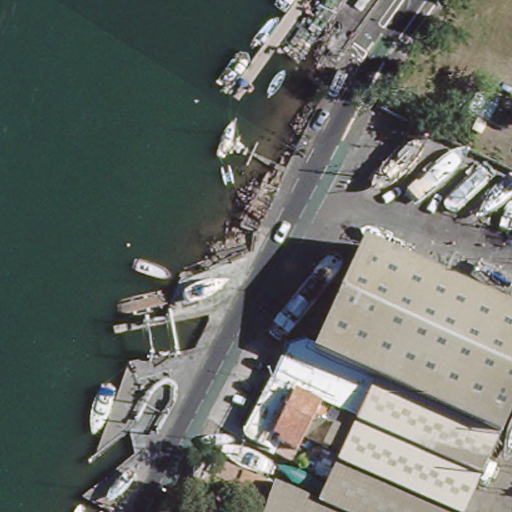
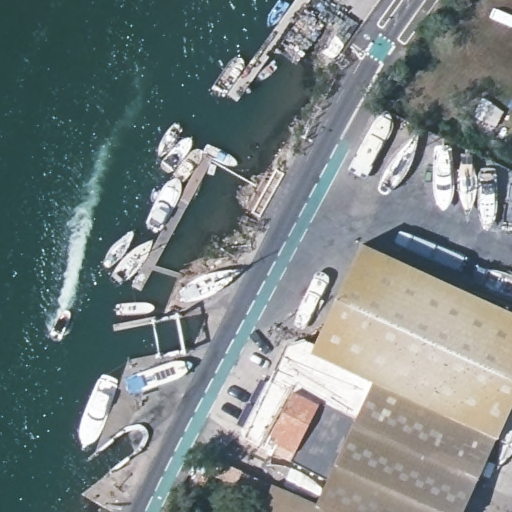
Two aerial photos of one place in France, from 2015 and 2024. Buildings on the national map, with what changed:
unchanged [(340,455),(323,447),(323,446),(332,425),(312,416),(295,453),(275,445),(278,438),(250,425),(270,383),(317,405),(320,401),(273,378),(288,347),(302,342),(317,347),(362,247),(512,314),(512,407),(464,512),(331,512),(316,506),(328,479),(340,455)]
unchanged [(331,512),(265,512),(268,503),(273,487),(316,506),(331,512)]

